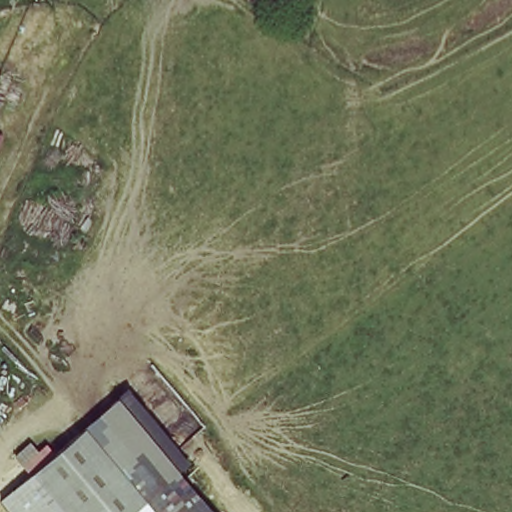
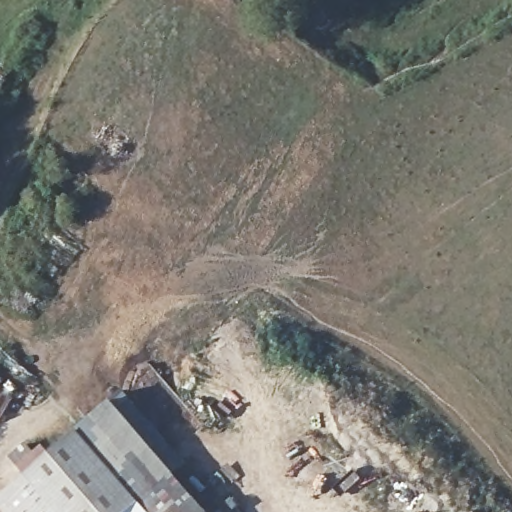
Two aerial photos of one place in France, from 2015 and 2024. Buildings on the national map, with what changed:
unchanged [(212,512),(154,512),(139,495),(80,428),(113,399),(212,512)]
unchanged [(80,428),(139,495),(120,512),(66,512),(31,472),(49,456),(80,428)]
unchanged [(31,472),(66,512),(14,512),(1,497),(31,472)]
unchanged [(154,512),(120,512),(139,495),(154,512)]

